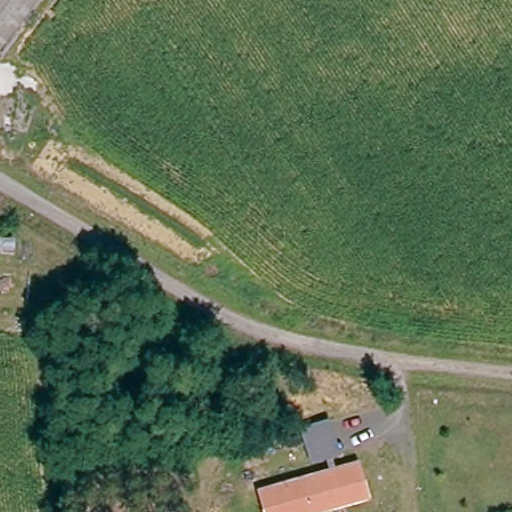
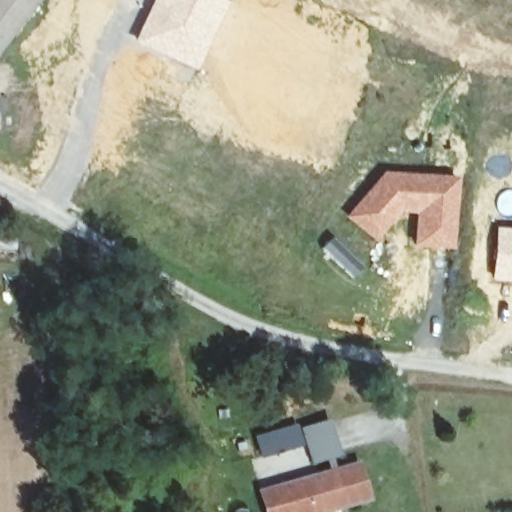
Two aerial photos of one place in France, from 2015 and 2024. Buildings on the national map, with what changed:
unchanged [(38,0),(0,52),(0,0),(38,0)]
new [(218,0),(224,3),(192,71),(131,41),(151,0),(218,0)]
new [(382,170),(457,177),(453,250),(412,248),(413,215),(399,215),(376,244),(344,217),(382,170)]
new [(512,228),(512,282),(490,281),(495,227),(512,228)]
new [(332,236),(365,269),(353,281),(319,249),(332,236)]
new [(308,451),(303,434),(299,419),(325,412),(329,427),(334,444),(308,451)]
unchanged [(354,466),(363,500),(319,512),(264,512),(258,492),(354,466)]

